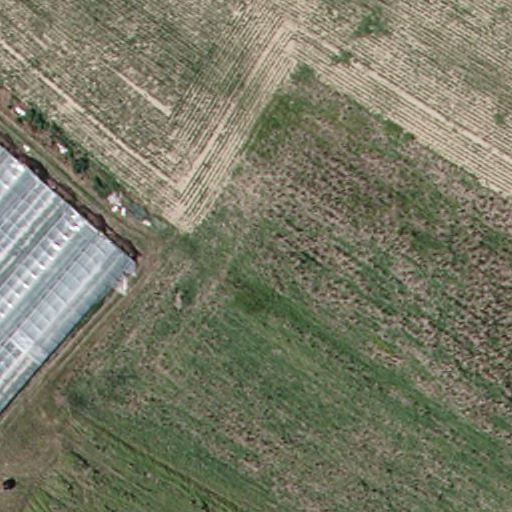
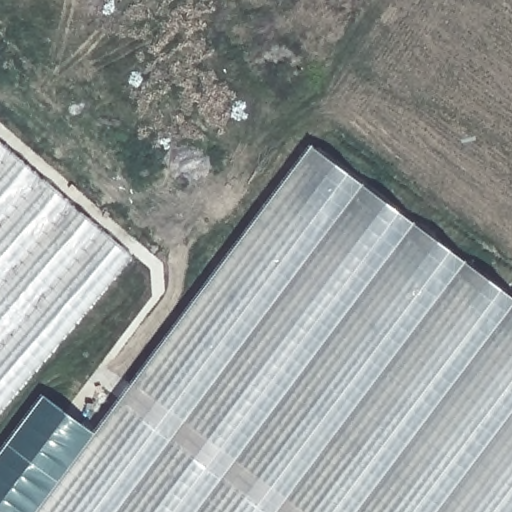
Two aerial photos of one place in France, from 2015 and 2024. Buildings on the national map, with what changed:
unchanged [(0,410),(0,134),(138,252),(0,410)]
new [(47,398),(100,436),(314,149),(512,298),(512,512),(0,512),(0,459),(47,398)]

